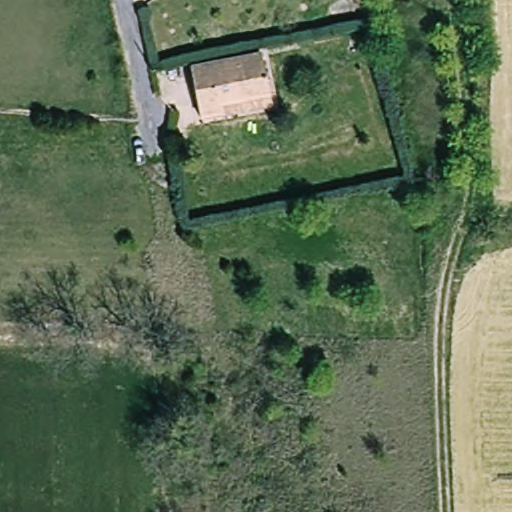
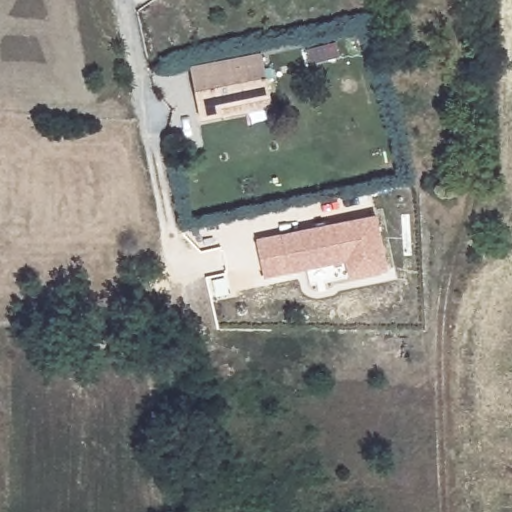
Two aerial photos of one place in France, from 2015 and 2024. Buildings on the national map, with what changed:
unchanged [(225,113),(206,116),(196,69),(265,54),(273,90),(275,101),(225,113)]
new [(388,271),(349,279),(346,262),(264,278),(257,240),(377,216),(388,271)]

